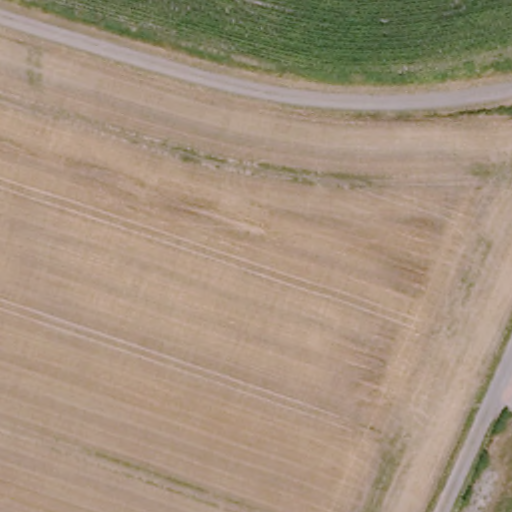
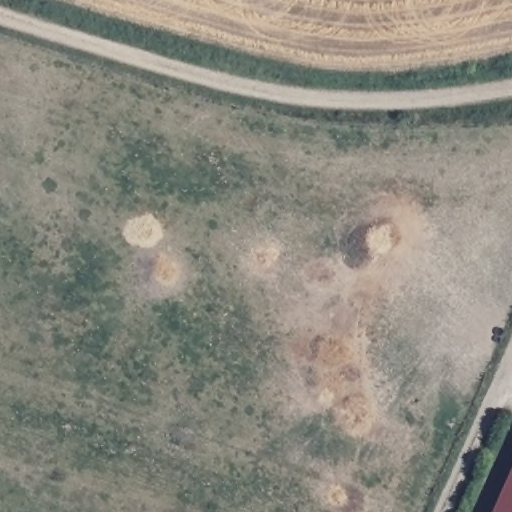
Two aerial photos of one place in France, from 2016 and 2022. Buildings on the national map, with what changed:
new [(512,475),(512,512),(495,512),(512,475)]

